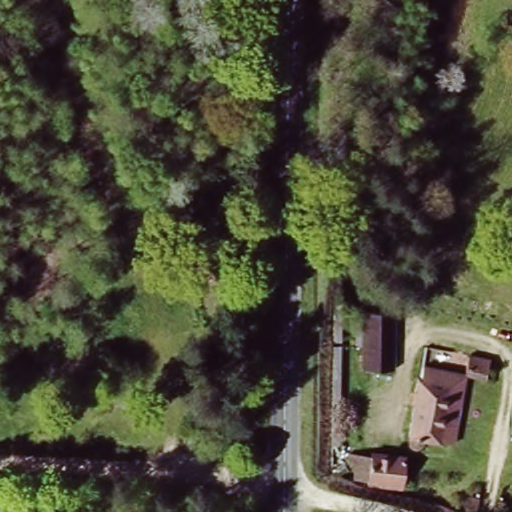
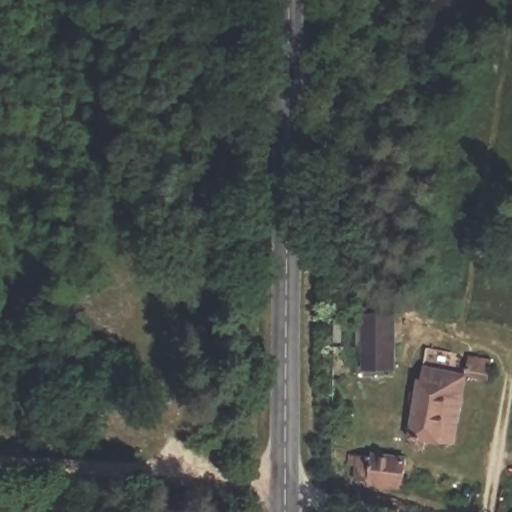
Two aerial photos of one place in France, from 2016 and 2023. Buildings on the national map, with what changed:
unchanged [(394,337),(392,376),(358,374),(361,309),(395,315),(394,337)]
unchanged [(426,370),(428,351),(492,357),(490,385),(470,383),(470,374),(426,370)]
unchanged [(426,370),(470,374),(470,383),(463,443),(409,438),(415,369),(426,370)]
unchanged [(412,453),(407,499),(352,496),(355,447),(412,453)]

